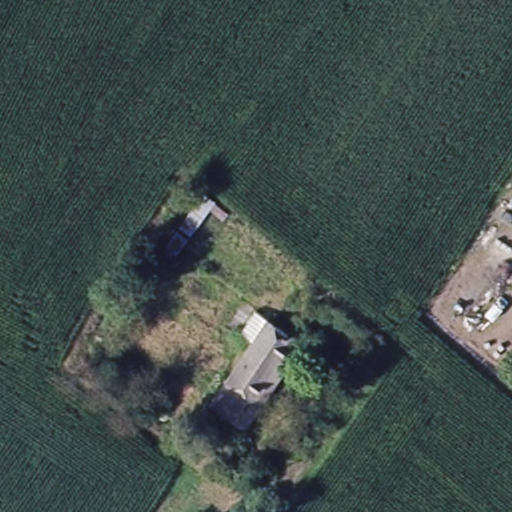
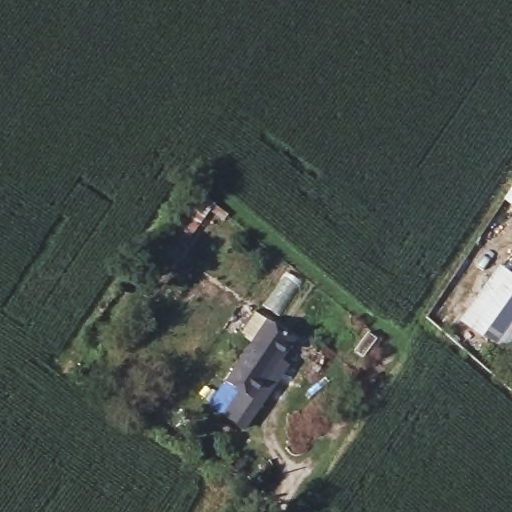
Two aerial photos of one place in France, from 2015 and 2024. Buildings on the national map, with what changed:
unchanged [(184,244),(175,237),(197,202),(207,210),(184,244)]
new [(500,265),(512,274),(512,355),(459,319),(500,265)]
unchanged [(264,409),(247,433),(209,405),(255,346),(242,336),(258,311),(298,341),(285,360),(297,367),(264,409)]

